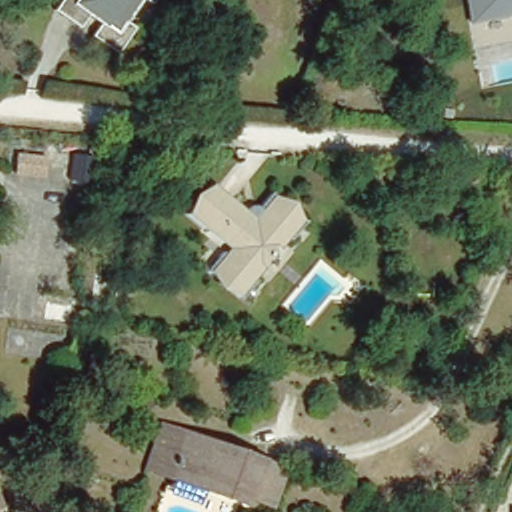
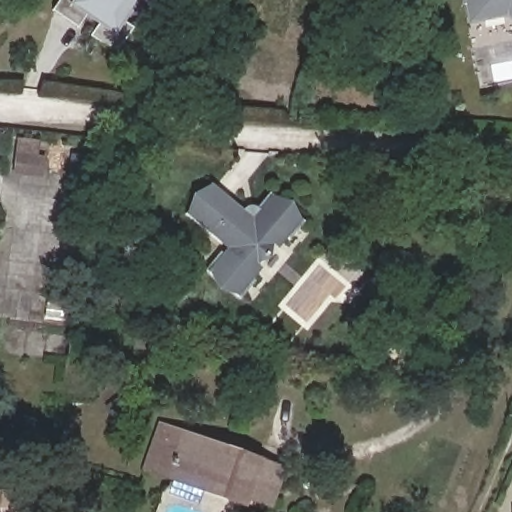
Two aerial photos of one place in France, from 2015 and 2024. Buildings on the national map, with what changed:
unchanged [(125,17),(132,22),(116,47),(92,31),(99,20),(86,11),(79,22),(53,5),(57,0),(136,0),(125,17)]
unchanged [(463,1),(463,0),(469,0),(463,1)]
unchanged [(503,15),(475,19),(473,0),(512,0),(512,22),(503,15)]
unchanged [(286,239),(279,234),(266,249),(270,252),(261,262),(258,260),(245,275),(252,281),(238,299),(203,270),(217,252),(225,259),(234,247),(223,238),(218,244),(183,215),(208,185),(243,213),(242,215),(246,219),(253,217),(256,214),(251,210),(266,193),(301,221),(286,239)]
unchanged [(77,361),(68,360),(71,337),(81,339),(77,361)]
unchanged [(98,375),(87,374),(90,354),(101,355),(98,375)]
unchanged [(160,399),(140,412),(144,419),(124,430),(108,405),(148,381),(160,399)]
unchanged [(166,493),(171,478),(143,468),(157,426),(280,470),(268,503),(244,494),(241,503),(200,488),(195,505),(166,493)]
unchanged [(0,512),(0,503),(3,512),(0,512)]

